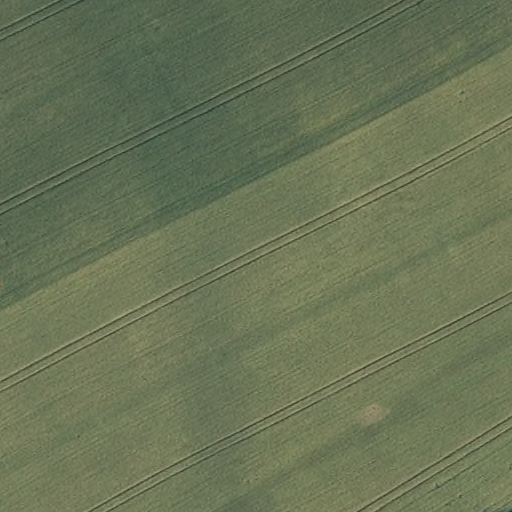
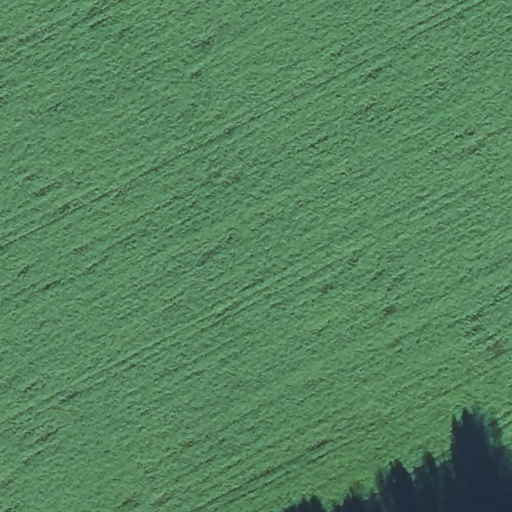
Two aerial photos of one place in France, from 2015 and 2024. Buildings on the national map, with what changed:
[]

